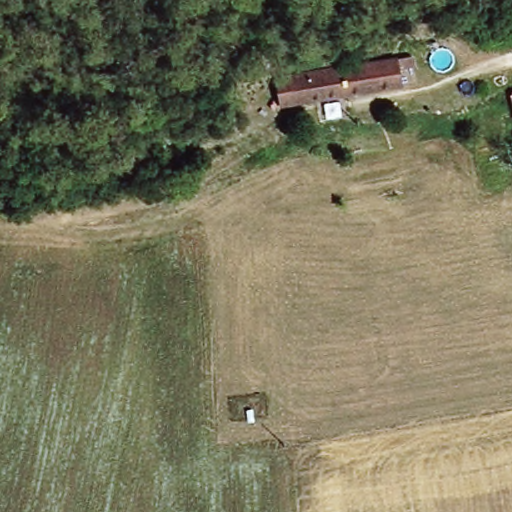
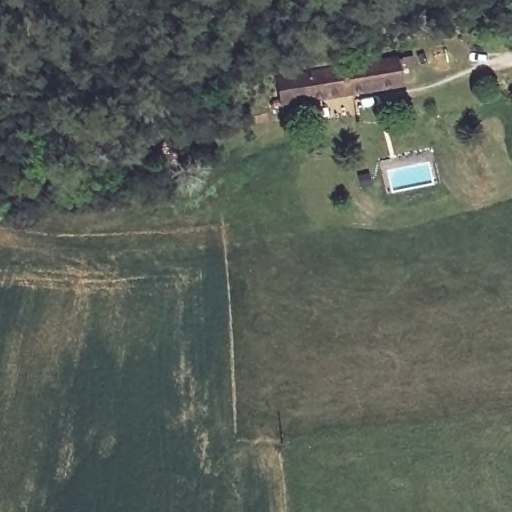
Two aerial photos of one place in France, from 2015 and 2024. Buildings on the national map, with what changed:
unchanged [(270,80),(411,56),(414,68),(396,71),(399,83),(274,106),(270,80)]
unchanged [(512,73),(512,87),(510,73),(512,73)]

